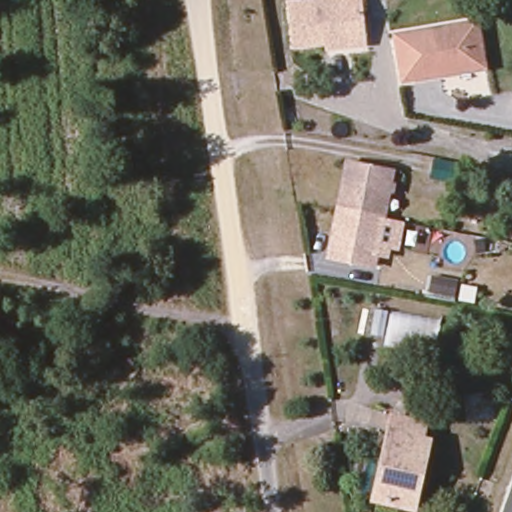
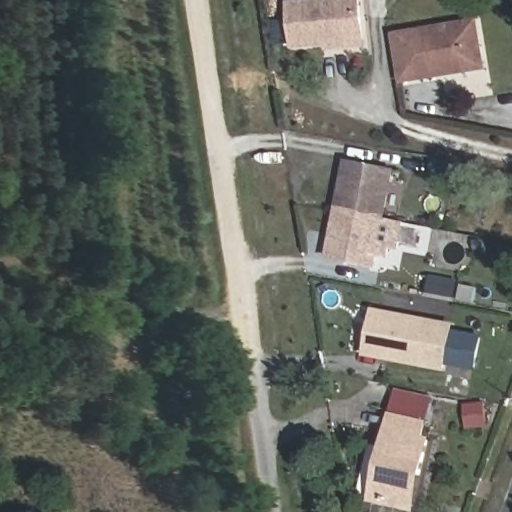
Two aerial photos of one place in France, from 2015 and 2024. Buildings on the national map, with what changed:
unchanged [(297,44),(293,3),(305,2),(327,0),(357,0),(361,37),(312,42),(297,44)]
unchanged [(475,21),(484,63),(406,77),(398,33),(475,21)]
unchanged [(396,240),(376,236),(372,259),(346,254),(327,250),(337,203),(346,156),(390,165),(381,212),(401,215),(396,240)]
unchanged [(465,187),(438,182),(442,164),(468,169),(465,187)]
new [(455,322),(446,371),(363,355),(373,307),(455,322)]
new [(416,433),(419,420),(390,414),(395,389),(433,396),(423,435),(416,433)]
unchanged [(370,438),(384,441),(390,414),(419,420),(416,433),(423,435),(413,478),(407,503),(372,494),(358,491),(370,438)]

